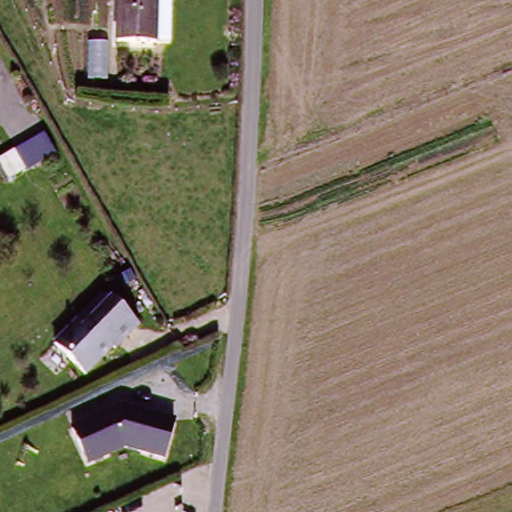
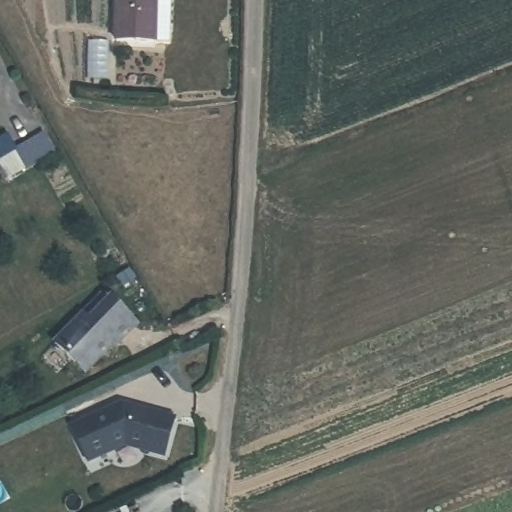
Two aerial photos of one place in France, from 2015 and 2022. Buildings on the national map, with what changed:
unchanged [(117,0),(153,0),(152,5),(161,6),(165,9),(167,15),(162,47),(149,45),(113,42),(117,0)]
unchanged [(0,180),(0,157),(43,135),(55,157),(2,184),(0,180)]
unchanged [(108,347),(107,346),(85,375),(50,349),(75,317),(82,322),(101,297),(130,321),(108,347)]
unchanged [(123,400),(178,417),(165,460),(127,448),(87,465),(69,426),(123,400)]

